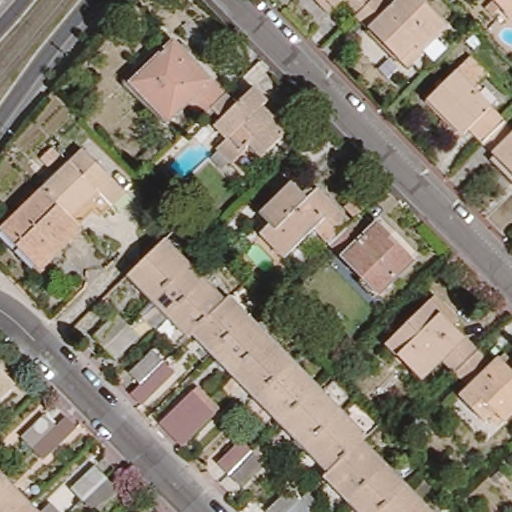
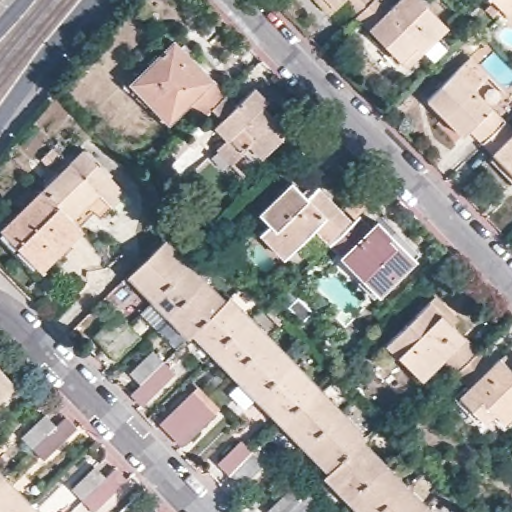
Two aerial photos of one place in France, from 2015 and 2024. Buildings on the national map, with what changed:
unchanged [(323,0),(349,0),(336,13),(323,0)]
unchanged [(377,0),(364,14),(351,0),(377,0)]
unchanged [(377,0),(391,0),(397,7),(404,0),(425,0),(450,26),(411,64),(392,43),(363,15),(364,14),(377,0)]
unchanged [(494,0),(512,0),(512,6),(505,12),(494,0)]
unchanged [(206,114),(203,116),(189,101),(169,121),(132,82),(174,40),(226,93),(206,114)]
unchanged [(474,129),(468,135),(433,99),(470,62),(475,57),(493,75),(488,79),(479,87),(510,120),(488,142),(474,129)]
unchanged [(237,104),(254,87),(267,100),(264,104),(274,115),(279,111),(293,126),(262,156),(251,145),(233,162),(218,146),(227,137),(206,114),(226,93),(237,104)]
unchanged [(512,122),(512,167),(488,142),(510,120),(512,122)]
unchanged [(44,187),(83,149),(125,191),(103,213),(96,207),(80,224),(44,187)]
unchanged [(319,222),(290,250),(266,224),(274,216),(265,207),(298,177),(312,191),(323,182),(356,216),(334,237),(319,222)]
unchanged [(10,220),(44,187),(80,224),(83,227),(41,267),(18,242),(3,227),(10,220)]
unchanged [(356,216),(364,209),(376,223),(384,216),(419,253),(383,288),(346,252),(347,249),(334,237),(356,216)]
unchanged [(194,263),(158,298),(133,273),(170,238),(194,263)]
unchanged [(176,317),(158,298),(194,263),(212,282),(176,317)]
unchanged [(230,301),(198,331),(194,336),(176,317),(212,282),(230,301)]
unchanged [(425,378),(391,342),(433,302),(439,296),(463,318),(457,325),(483,352),(461,372),(447,357),(425,378)]
unchanged [(253,317),(218,352),(198,331),(230,301),(233,297),(253,317)]
unchanged [(129,343),(128,343),(116,356),(105,345),(94,334),(116,312),(128,323),(138,335),(129,343)]
unchanged [(274,337),(238,372),(218,352),(253,317),(274,337)]
unchanged [(298,362),(261,397),(238,372),(274,337),(298,362)]
unchanged [(131,371),(153,349),(163,361),(174,372),(143,403),(132,392),(141,382),(131,371)]
unchanged [(491,421),(468,397),(476,388),(461,372),(483,352),(498,366),(505,360),(512,352),(512,420),(509,423),(501,431),(491,421)]
unchanged [(0,361),(20,381),(0,401),(0,361)]
unchanged [(322,387),(286,422),(261,397),(298,362),(322,387)]
unchanged [(346,411),(309,446),(286,422),(322,387),(346,411)]
unchanged [(183,443),(172,432),(161,421),(193,390),(203,401),(214,412),(183,443)]
unchanged [(369,436),(366,439),(334,471),(309,446),(346,411),(369,436)]
unchanged [(44,457),(33,445),(23,434),(45,412),(55,423),(66,436),(44,457)]
unchanged [(391,464),(353,501),(329,476),(334,471),(366,439),(391,464)]
unchanged [(254,471),(253,472),(241,483),(229,472),(219,462),(241,440),(251,451),(263,462),(254,471)]
unchanged [(0,477),(0,461),(8,469),(0,477)]
unchanged [(411,485),(382,512),(364,512),(353,501),(391,464),(411,485)]
unchanged [(94,509),(83,497),(73,486),(94,465),(105,477),(116,488),(94,509)]
unchanged [(34,497),(18,512),(0,512),(0,477),(8,469),(34,497)]
unchanged [(431,505),(423,512),(382,512),(411,485),(431,505)]
unchanged [(308,512),(269,512),(266,510),(288,488),(299,499),(310,510),(308,512)]
unchanged [(34,497),(49,512),(18,512),(34,497)]
unchanged [(437,512),(423,512),(431,505),(437,512)]
unchanged [(139,511),(140,512),(137,512),(139,511)]

